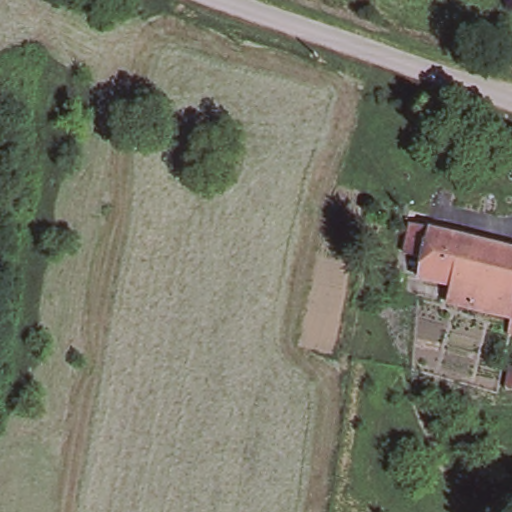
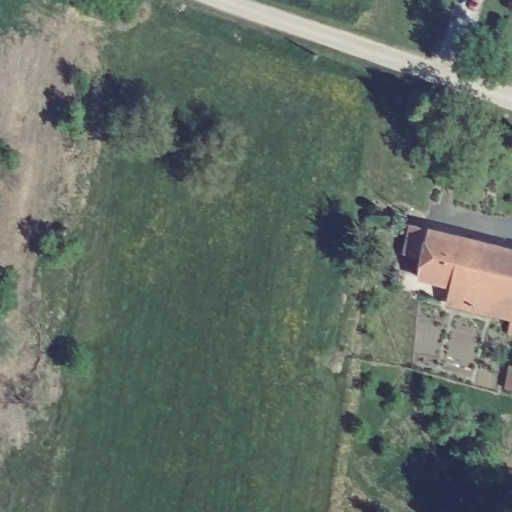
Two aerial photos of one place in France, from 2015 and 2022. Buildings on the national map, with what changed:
unchanged [(507,319),(445,301),(449,284),(416,275),(421,255),(401,251),(408,224),(428,228),(429,226),(512,247),(512,334),(505,332),(507,319)]

